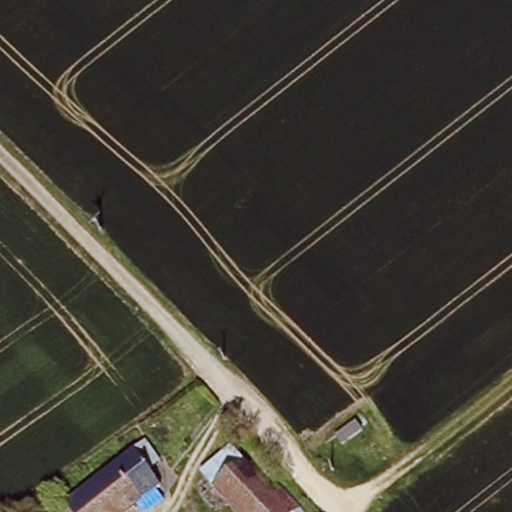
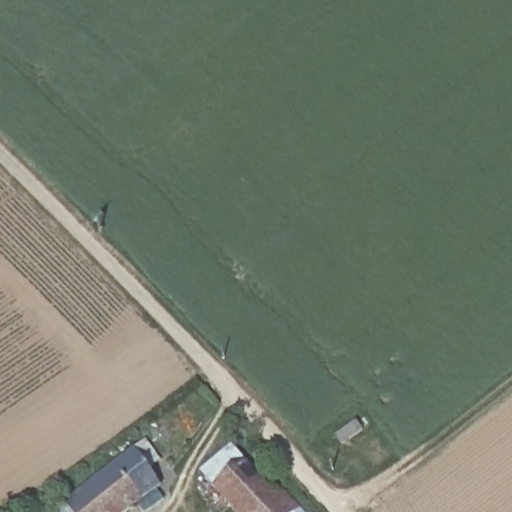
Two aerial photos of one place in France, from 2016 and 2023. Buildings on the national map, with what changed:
unchanged [(150,431),(167,450),(152,464),(171,484),(154,499),(149,493),(125,512),(77,512),(70,503),(150,431)]
unchanged [(205,475),(237,446),(280,495),(286,490),(305,512),(237,512),(205,475)]

